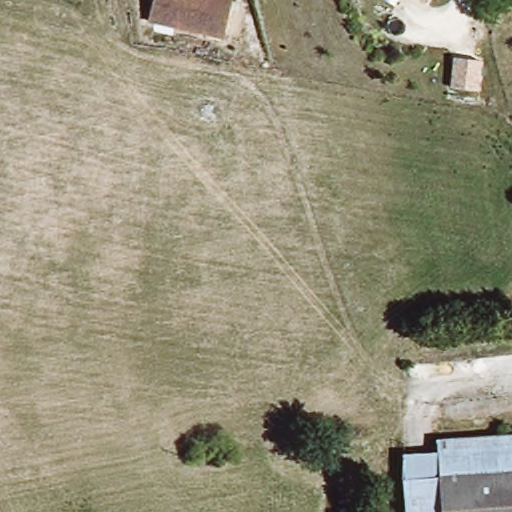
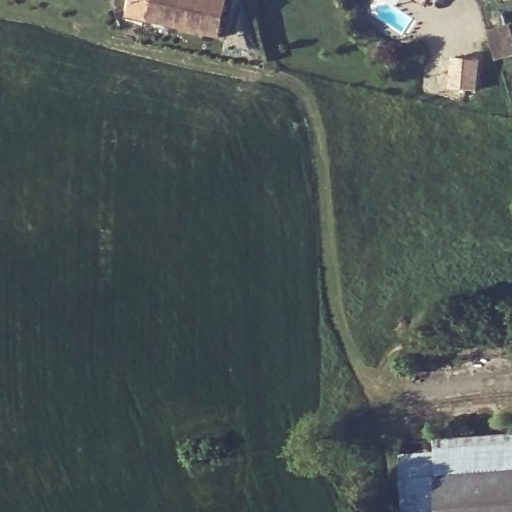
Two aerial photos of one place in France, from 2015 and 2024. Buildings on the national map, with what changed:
unchanged [(151,18),(154,0),(231,0),(228,28),(151,18)]
unchanged [(426,0),(429,0),(428,1),(426,0)]
new [(510,26),(512,35),(512,57),(498,61),(491,31),(510,26)]
unchanged [(481,91),(450,89),(452,56),(482,59),(481,91)]
unchanged [(512,428),(512,512),(442,512),(437,447),(436,435),(512,428)]
unchanged [(437,447),(442,512),(406,512),(403,450),(437,447)]

